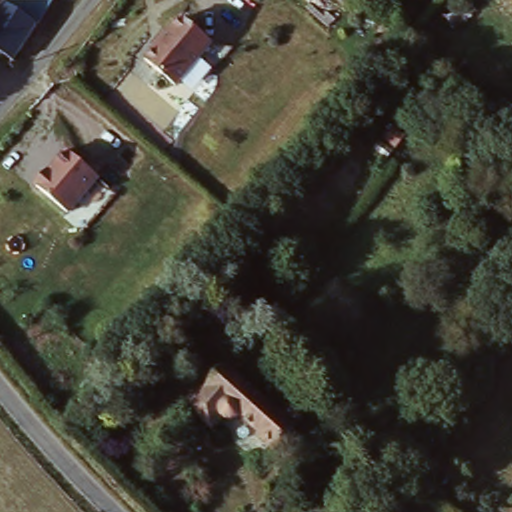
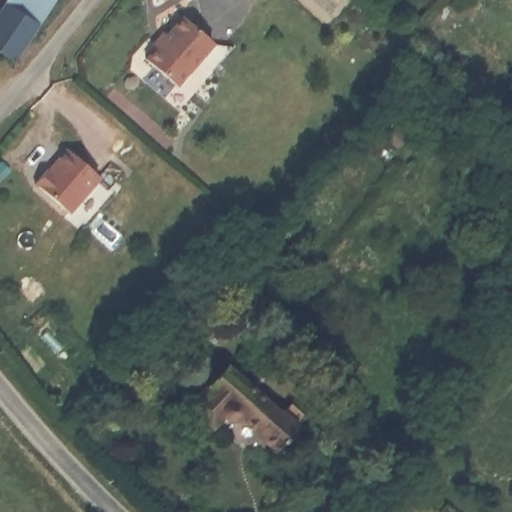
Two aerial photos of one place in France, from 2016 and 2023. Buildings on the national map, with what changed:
unchanged [(60,0),(42,25),(9,3),(11,0),(60,0)]
unchanged [(0,49),(0,16),(9,3),(42,25),(17,60),(0,49)]
unchanged [(150,45),(161,32),(166,37),(182,19),(214,45),(176,89),(144,63),(156,49),(150,45)]
unchanged [(97,183),(67,219),(34,190),(46,175),(48,176),(65,155),(97,183)]
unchanged [(232,367),(281,413),(285,410),(287,411),(293,405),(305,415),(297,423),(301,426),(277,452),(261,438),(264,435),(241,413),(232,423),(226,420),(216,429),(193,406),(232,367)]

